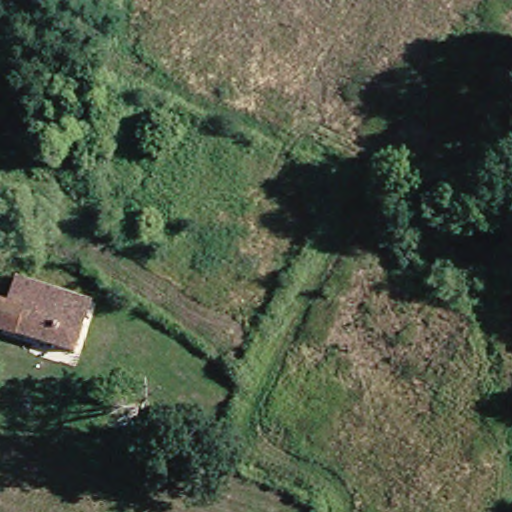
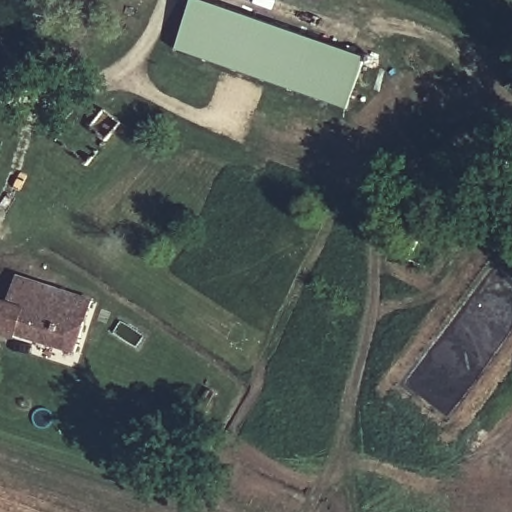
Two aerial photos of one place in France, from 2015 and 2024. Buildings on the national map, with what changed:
new [(193,3),(364,63),(345,116),(175,56),(193,3)]
unchanged [(15,283),(98,308),(96,318),(79,314),(70,348),(0,331),(0,302),(10,304),(15,283)]

